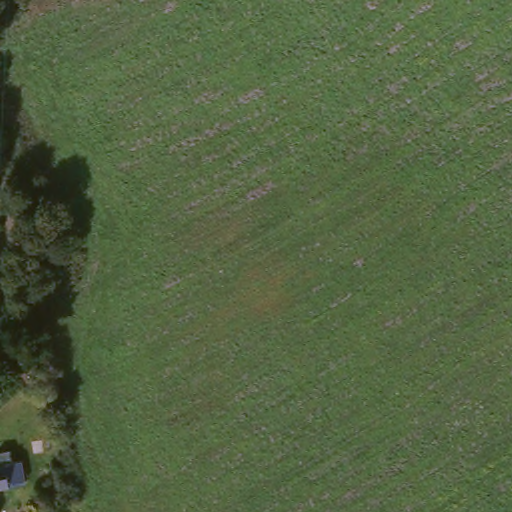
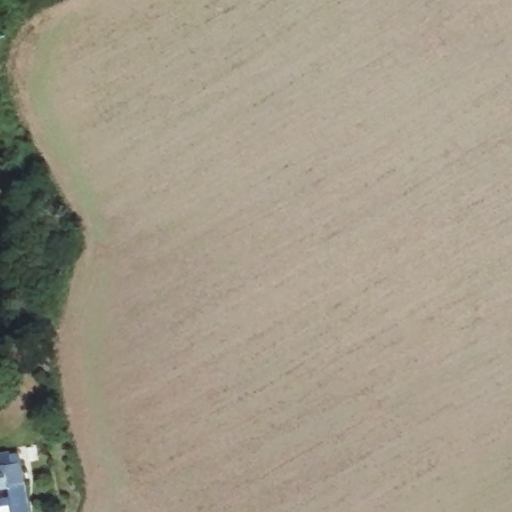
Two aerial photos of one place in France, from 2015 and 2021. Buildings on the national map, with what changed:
unchanged [(22,456),(27,476),(0,483),(0,461),(22,456)]

